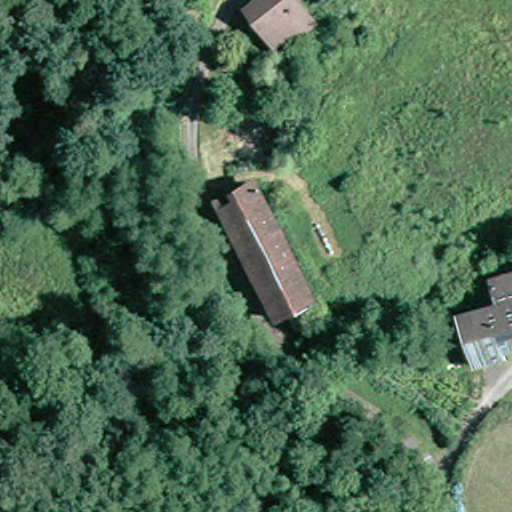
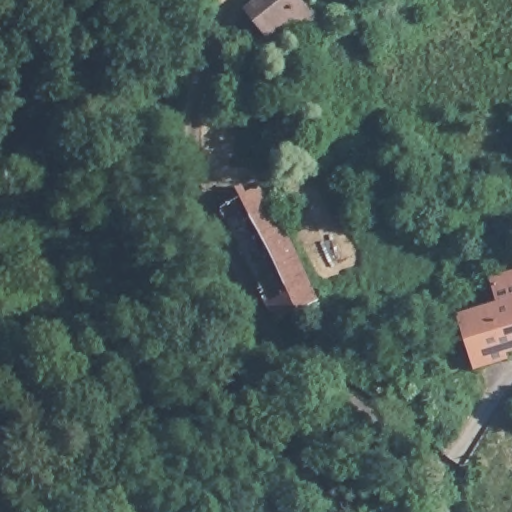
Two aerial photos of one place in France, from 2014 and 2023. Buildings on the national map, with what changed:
unchanged [(250,5),(256,0),(296,0),(299,4),(304,0),(316,18),(282,45),(250,5)]
unchanged [(270,185),(322,291),(283,312),(229,205),(270,185)]
unchanged [(503,357),(482,365),(464,315),(497,303),(490,282),(512,274),(512,346),(500,350),(503,357)]

